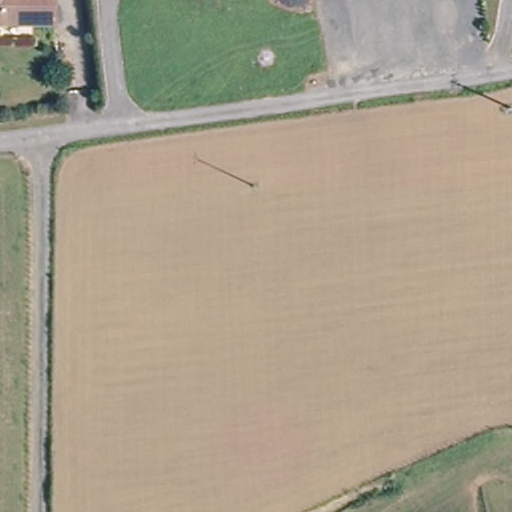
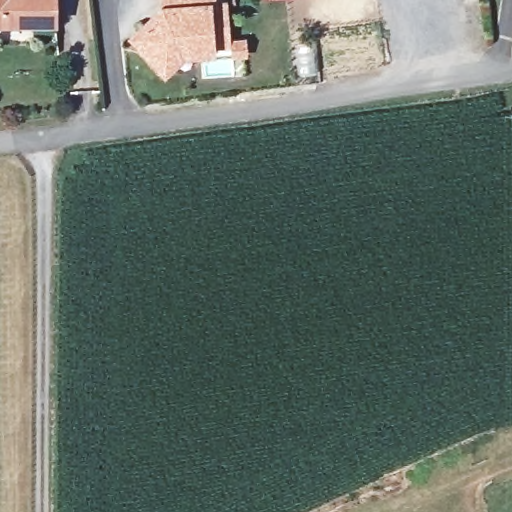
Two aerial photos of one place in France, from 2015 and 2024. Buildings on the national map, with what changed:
unchanged [(57,14),(0,17),(0,0),(57,0),(57,14)]
new [(230,46),(213,45),(215,56),(185,58),(164,77),(126,37),(160,5),(159,0),(215,0),(228,0),(230,46)]

